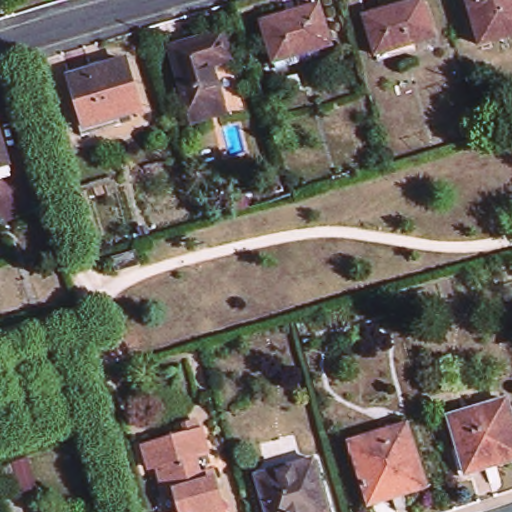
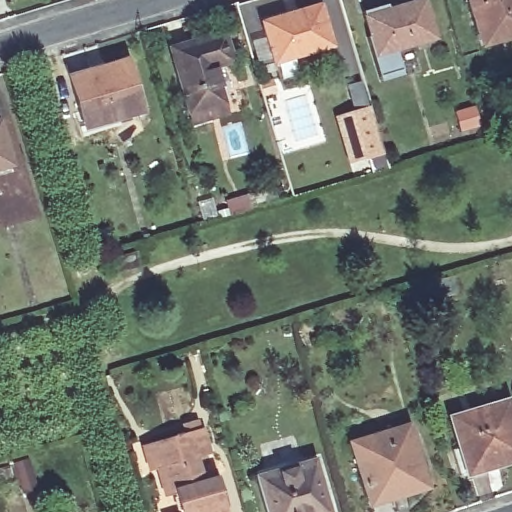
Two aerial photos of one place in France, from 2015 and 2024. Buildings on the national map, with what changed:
unchanged [(431,40),(375,56),(364,19),(362,15),(387,8),(414,0),(421,0),(431,40)]
unchanged [(512,37),(481,46),(467,0),(512,0),(512,37)]
unchanged [(328,47),(272,63),(261,26),(260,21),(295,12),(317,5),(328,47)]
unchanged [(221,37),(230,67),(211,72),(225,118),(191,127),(169,53),(221,37)]
unchanged [(123,59),(140,111),(83,127),(68,76),(123,59)]
new [(367,107),(380,154),(361,160),(347,164),(334,116),(347,112),(367,107)]
unchanged [(9,167),(0,169),(0,135),(9,167)]
unchanged [(512,419),(512,461),(466,475),(448,418),(506,400),(512,419)]
unchanged [(407,426),(425,489),(370,506),(350,443),(407,426)]
unchanged [(169,494),(161,467),(154,469),(147,448),(206,431),(212,452),(197,456),(205,483),(218,479),(226,508),(228,512),(184,512),(177,491),(169,494)]
unchanged [(14,465),(29,460),(37,490),(22,494),(14,465)]
unchanged [(328,512),(267,512),(256,477),(312,460),(328,512)]

